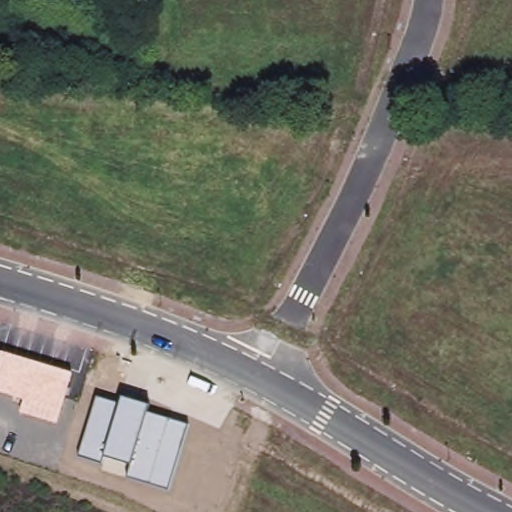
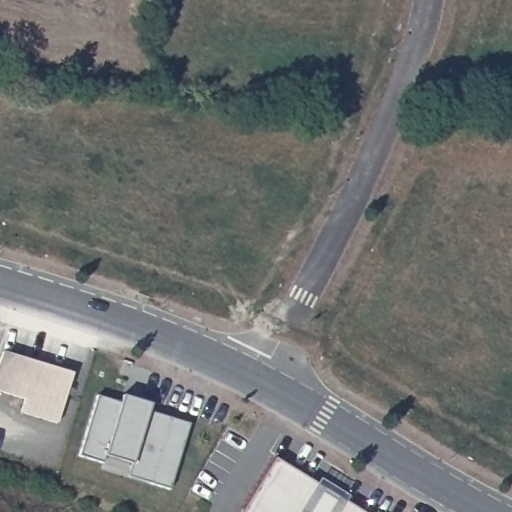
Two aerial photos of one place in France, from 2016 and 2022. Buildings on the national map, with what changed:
unchanged [(24,399),(0,391),(0,356),(1,351),(72,373),(58,422),(19,412),(24,399)]
unchanged [(97,397),(119,404),(121,396),(149,404),(147,412),(189,424),(168,490),(125,477),(129,464),(104,455),(101,463),(79,455),(97,397)]
new [(362,512),(243,512),(275,459),(362,512)]

